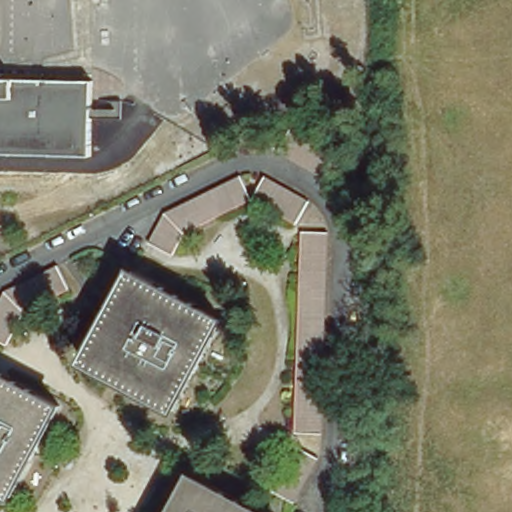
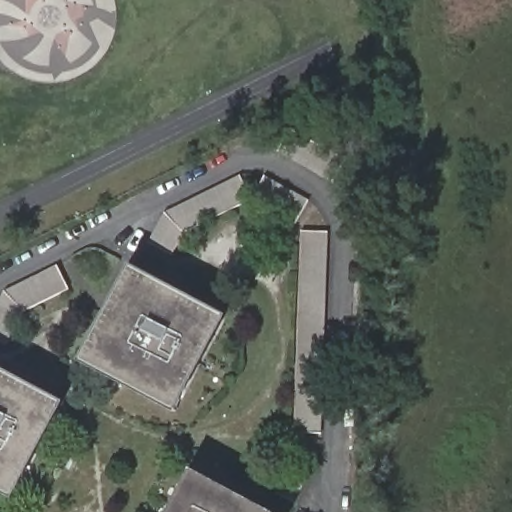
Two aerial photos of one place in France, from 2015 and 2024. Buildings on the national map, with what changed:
demolished [(89,157),(0,154),(0,79),(91,81),(89,157)]
unchanged [(337,185),(282,152),(296,130),(350,162),(337,185)]
unchanged [(252,201),(185,234),(172,256),(149,242),(166,214),(240,176),(252,201)]
unchanged [(296,224),(254,198),(268,176),(271,177),(298,193),(310,200),(296,224)]
unchanged [(307,232),(334,234),(325,435),(299,435),(307,232)]
unchanged [(0,303),(4,295),(59,269),(71,293),(26,312),(7,348),(0,344),(0,303)]
unchanged [(217,326),(169,417),(78,368),(127,277),(217,326)]
unchanged [(0,499),(0,377),(55,407),(5,502),(0,499)]
unchanged [(320,458),(296,503),(273,490),(298,447),(320,458)]
unchanged [(194,472),(268,512),(173,512),(194,472)]

